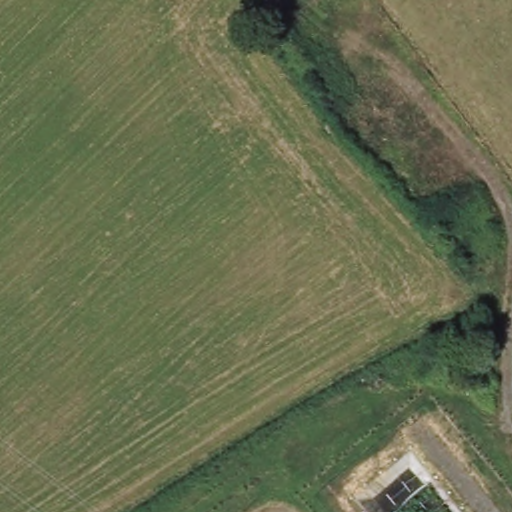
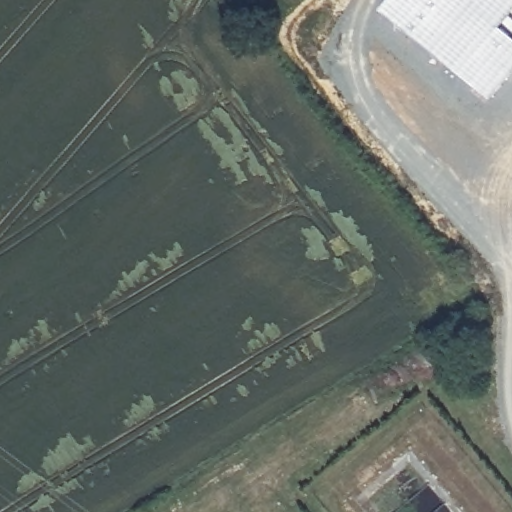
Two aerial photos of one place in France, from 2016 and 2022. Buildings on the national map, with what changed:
new [(512,0),(512,5),(495,25),(512,39),(512,67),(485,97),(380,6),(385,0),(512,0)]

